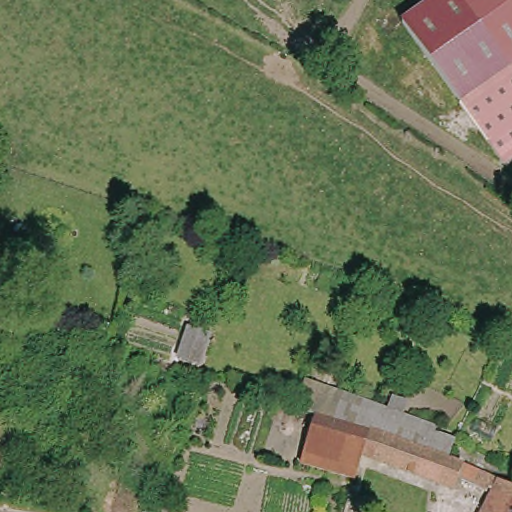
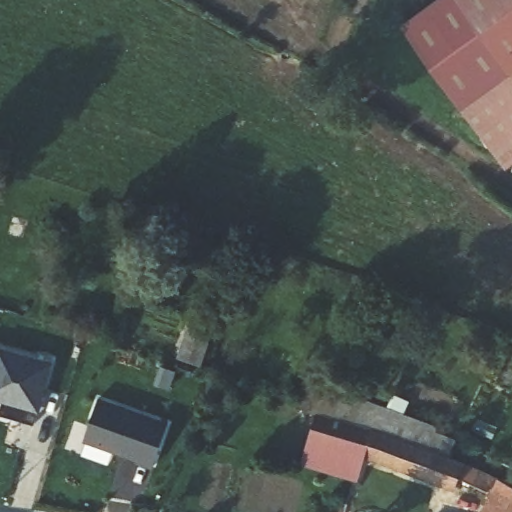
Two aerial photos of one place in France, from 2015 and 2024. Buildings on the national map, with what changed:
unchanged [(512,163),(502,170),(400,26),(435,0),(460,0),(512,72),(512,163)]
unchanged [(512,0),(512,72),(460,0),(512,0)]
demolished [(352,282),(336,320),(315,312),(332,275),(352,282)]
unchanged [(189,322),(215,331),(202,372),(175,366),(189,322)]
new [(28,425),(5,418),(10,404),(0,401),(0,350),(58,366),(45,414),(41,428),(28,425)]
unchanged [(324,381),(329,370),(344,375),(341,388),(387,403),(392,390),(410,398),(405,416),(457,435),(453,457),(315,415),(319,405),(292,395),(297,377),(324,381)]
new [(175,427),(159,471),(143,466),(144,463),(129,458),(130,456),(124,454),(120,455),(90,445),(105,403),(175,427)]
unchanged [(453,457),(497,476),(493,484),(490,482),(487,488),(456,479),(454,484),(365,453),(355,480),(300,461),(315,415),(453,457)]
unchanged [(493,484),(497,476),(512,483),(512,512),(479,512),(493,484)]

